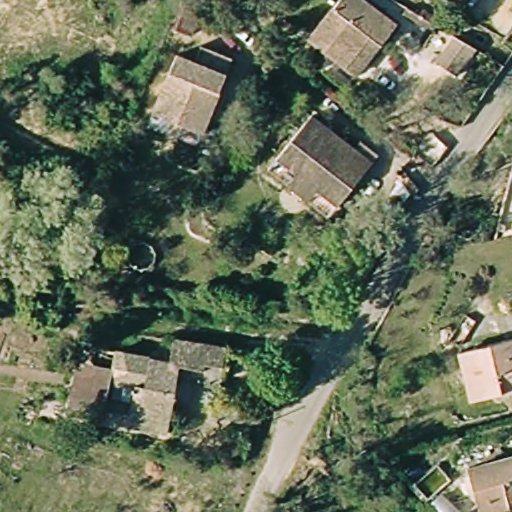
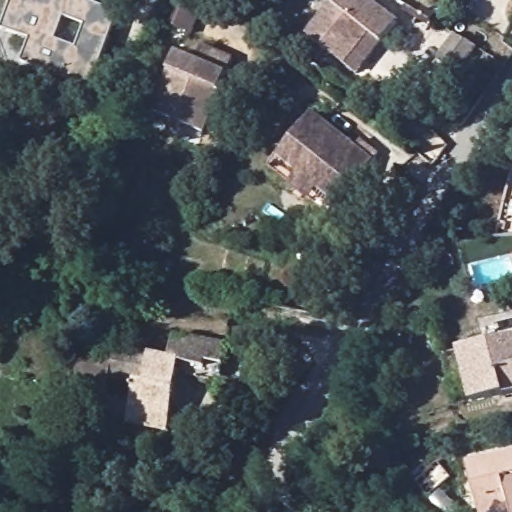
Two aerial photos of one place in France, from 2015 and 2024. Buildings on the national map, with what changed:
new [(23,62),(31,40),(4,29),(14,0),(85,0),(118,12),(90,86),(23,62)]
unchanged [(360,67),(318,41),(341,0),(366,0),(400,21),(389,41),(378,35),(360,67)]
unchanged [(465,0),(462,5),(454,0),(465,0)]
unchanged [(452,29),(475,40),(462,69),(439,59),(452,29)]
unchanged [(183,56),(201,64),(207,48),(239,61),(209,135),(189,127),(184,141),(174,137),(180,123),(160,115),(183,56)]
unchanged [(355,143),(361,134),(380,146),(342,210),(275,169),(309,114),(355,143)]
unchanged [(342,210),(334,222),(268,181),(275,169),(342,210)]
unchanged [(111,398),(134,403),(137,389),(114,384),(118,366),(122,349),(176,359),(180,337),(229,348),(222,385),(181,377),(170,433),(106,419),(111,398)]
unchanged [(462,352),(512,338),(512,389),(472,400),(462,352)]
unchanged [(72,412),(82,358),(118,366),(114,384),(111,398),(106,419),(72,412)]
unchanged [(468,467),(512,458),(512,512),(511,512),(510,511),(506,512),(480,512),(468,467)]

